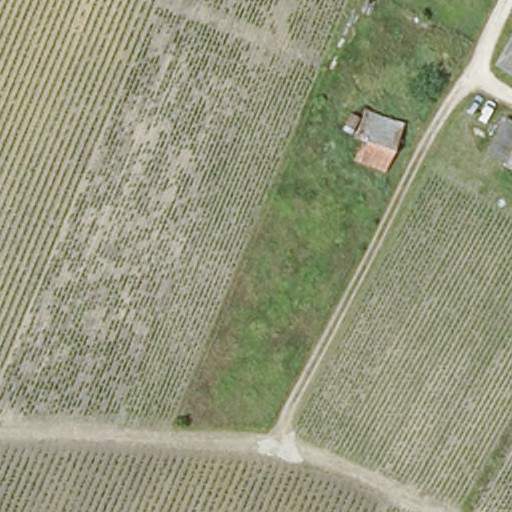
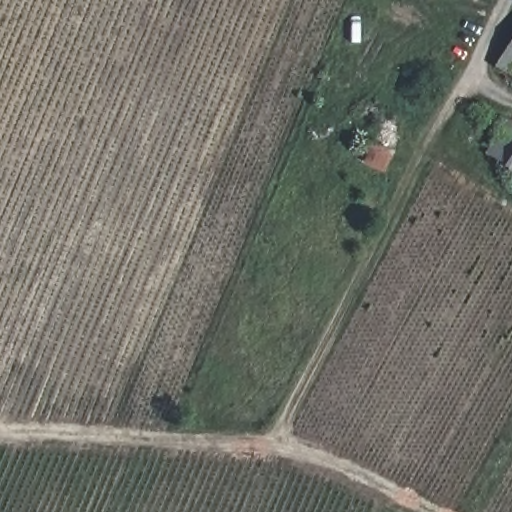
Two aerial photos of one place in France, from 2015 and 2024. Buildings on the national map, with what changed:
unchanged [(508,40),(501,35),(512,15),(512,76),(493,66),(508,40)]
unchanged [(384,174),(356,163),(362,145),(352,140),(362,113),(400,129),(384,174)]
unchanged [(512,172),(485,157),(503,121),(512,125),(512,172)]

